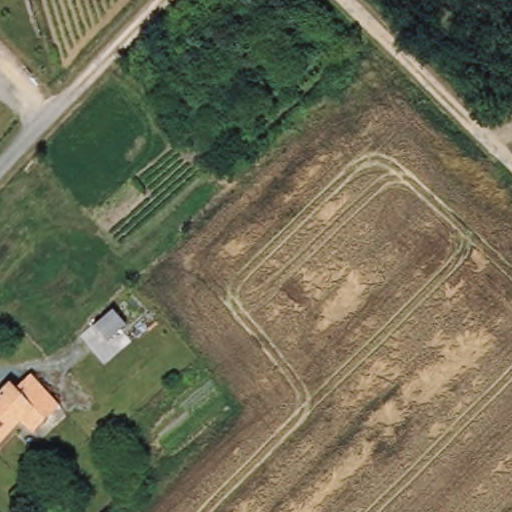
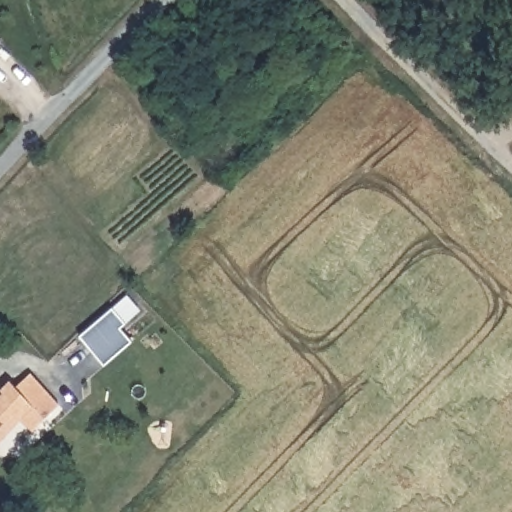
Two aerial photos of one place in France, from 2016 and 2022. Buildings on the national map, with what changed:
unchanged [(94,325),(113,308),(126,322),(107,339),(94,325)]
unchanged [(12,382),(18,387),(33,372),(62,402),(35,430),(24,420),(0,444),(0,396),(12,382)]

